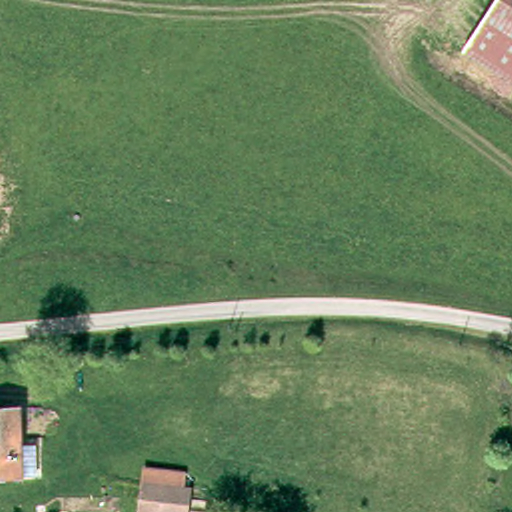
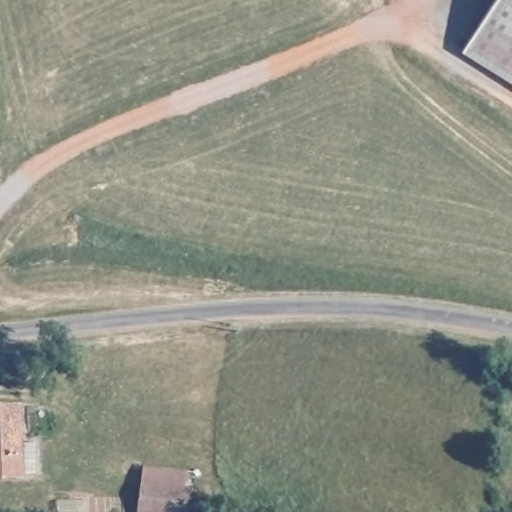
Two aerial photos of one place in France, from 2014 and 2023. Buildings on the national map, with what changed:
unchanged [(465,48),(496,0),(512,0),(512,78),(465,48)]
unchanged [(12,472),(0,472),(0,405),(7,404),(10,439),(30,439),(29,474),(12,472)]
unchanged [(137,478),(185,484),(183,512),(135,508),(137,478)]

